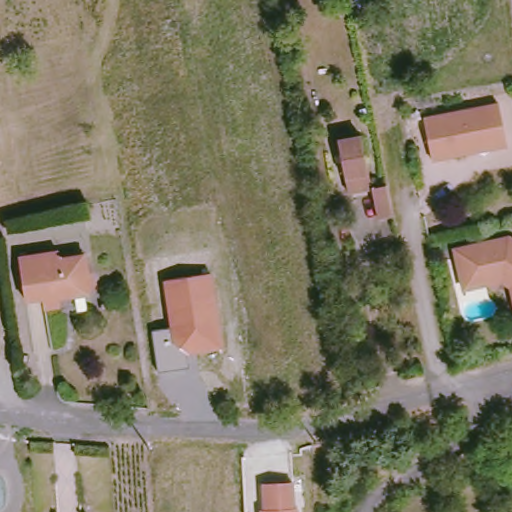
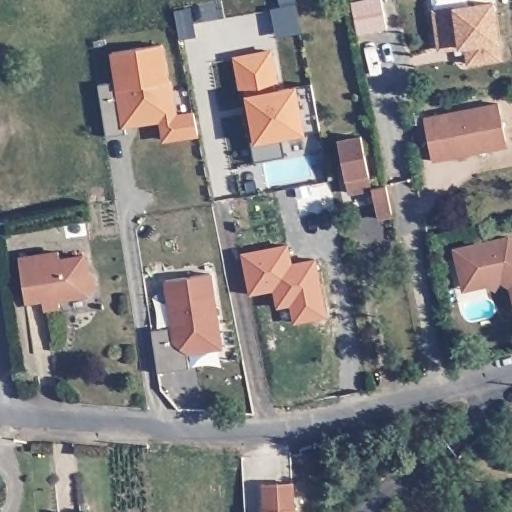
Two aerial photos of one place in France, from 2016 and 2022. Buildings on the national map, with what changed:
new [(494,1),(500,44),(503,61),(468,66),(465,49),(438,52),(432,10),(454,7),(494,1)]
new [(159,122),(124,127),(125,134),(107,136),(100,86),(114,83),(110,52),(165,45),(170,83),(173,82),(177,114),(194,112),(198,137),(163,141),(159,122)]
new [(320,130),(283,139),(286,157),(255,162),(252,144),(245,96),(244,90),(239,91),(233,57),(272,50),(280,89),(297,86),(297,89),(312,85),(320,130)]
unchanged [(476,157),(436,165),(428,122),(501,107),(508,145),(475,151),(476,157)]
unchanged [(342,148),(366,144),(376,192),(352,197),(342,148)]
unchanged [(376,192),(393,189),(399,219),(382,222),(376,192)]
new [(296,324),(293,306),(280,307),(278,293),(252,298),(242,252),(311,235),(329,317),(296,324)]
unchanged [(487,286),(477,280),(464,282),(459,252),(512,242),(512,286),(506,283),(487,286)]
unchanged [(95,278),(96,285),(91,291),(64,293),(66,307),(45,308),(44,300),(27,302),(20,258),(60,253),(61,257),(86,254),(89,274),(95,278)]
unchanged [(213,272),(223,349),(189,355),(191,366),(158,371),(152,331),(169,328),(163,280),(213,272)]
unchanged [(291,481),(292,506),(312,506),(312,512),(264,512),(264,509),(262,509),(261,482),(291,481)]

